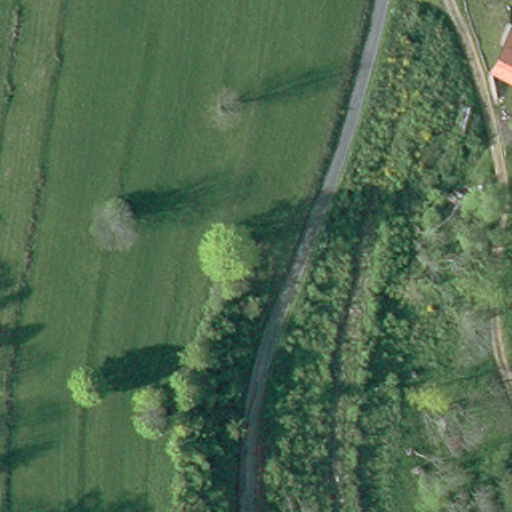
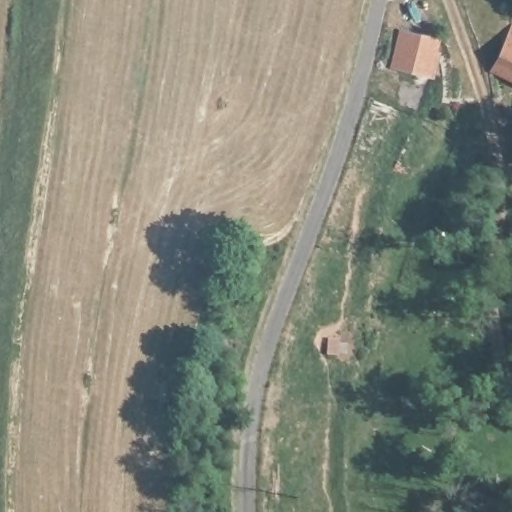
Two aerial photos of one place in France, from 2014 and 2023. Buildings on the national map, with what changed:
unchanged [(496,75),(509,45),(505,44),(486,37),(492,21),(512,29),(512,82),(496,75)]
new [(440,37),(437,50),(440,51),(433,77),(390,68),(399,27),(440,37)]

